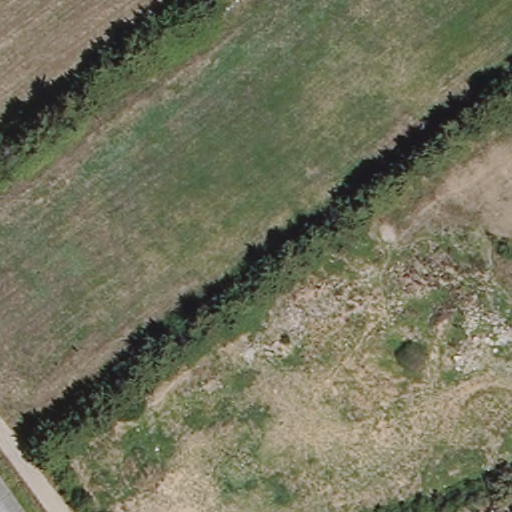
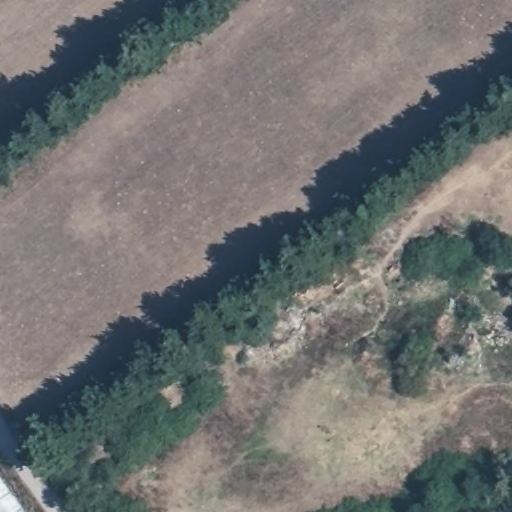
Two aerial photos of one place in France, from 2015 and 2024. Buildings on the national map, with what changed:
unchanged [(0,479),(22,512),(0,512),(0,479)]

